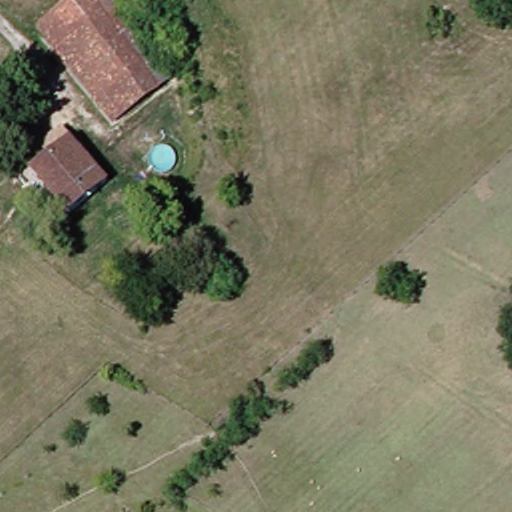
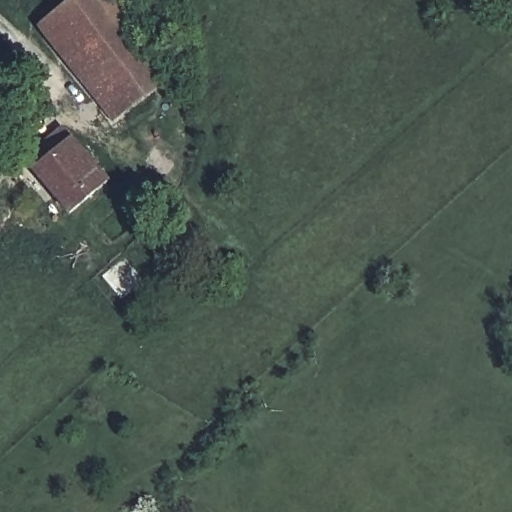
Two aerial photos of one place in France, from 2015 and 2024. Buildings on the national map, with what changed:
unchanged [(187,76),(176,84),(155,59),(104,100),(39,22),(64,0),(127,0),(178,59),(175,62),(187,76)]
unchanged [(125,126),(104,100),(155,59),(176,84),(125,126)]
unchanged [(75,214),(38,172),(54,159),(45,150),(67,132),(76,142),(114,182),(75,214)]

